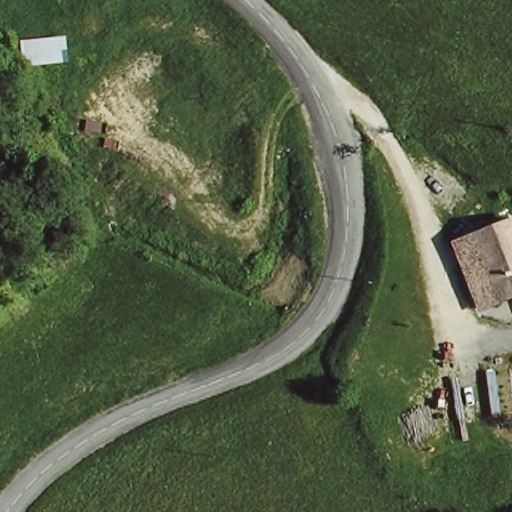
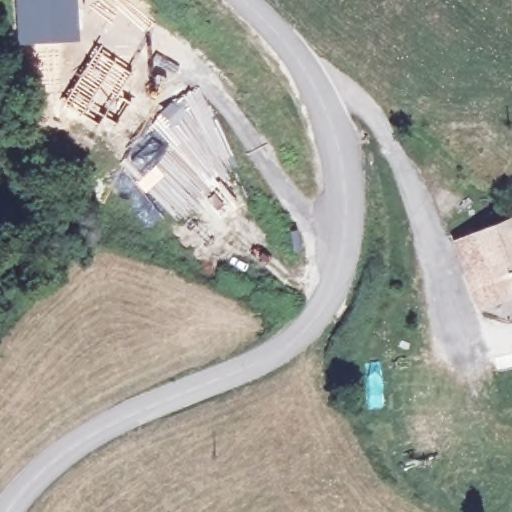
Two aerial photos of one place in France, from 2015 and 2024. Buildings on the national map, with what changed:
new [(79,41),(16,44),(13,0),(77,0),(79,41)]
unchanged [(481,300),(459,246),(512,229),(512,290),(481,300)]

